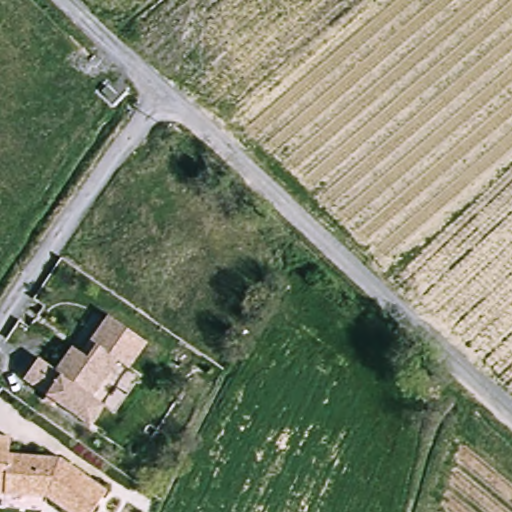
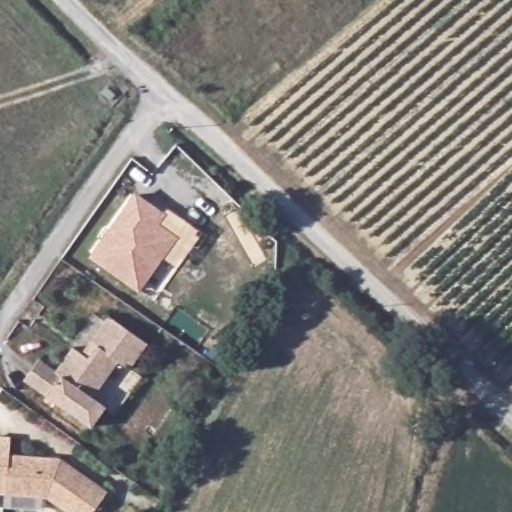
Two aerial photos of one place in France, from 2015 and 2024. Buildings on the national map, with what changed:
new [(178,238),(139,292),(89,257),(135,192),(166,214),(160,224),(178,238)]
unchanged [(35,365),(51,376),(72,348),(81,354),(90,344),(109,318),(151,346),(133,372),(119,364),(93,399),(107,409),(90,430),(47,396),(24,379),(35,365)]
unchanged [(20,441),(18,454),(51,459),(69,461),(115,498),(104,512),(72,512),(63,506),(61,503),(11,496),(0,494),(0,439),(20,441)]

